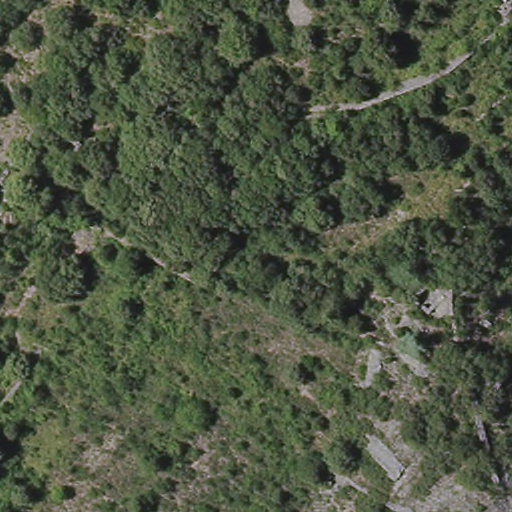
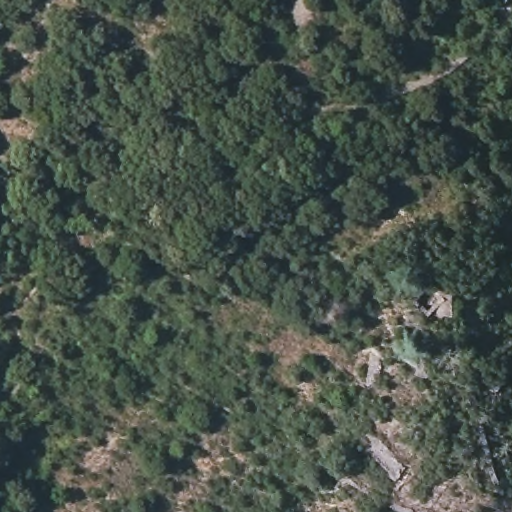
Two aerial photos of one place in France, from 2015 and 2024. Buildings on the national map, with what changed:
unchanged [(55,159),(62,165),(56,174),(49,168),(55,159)]

